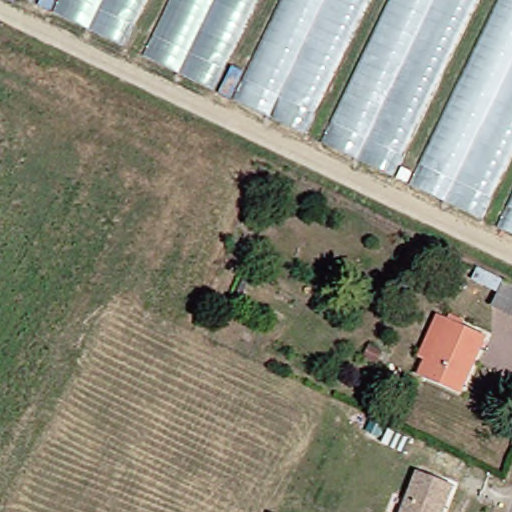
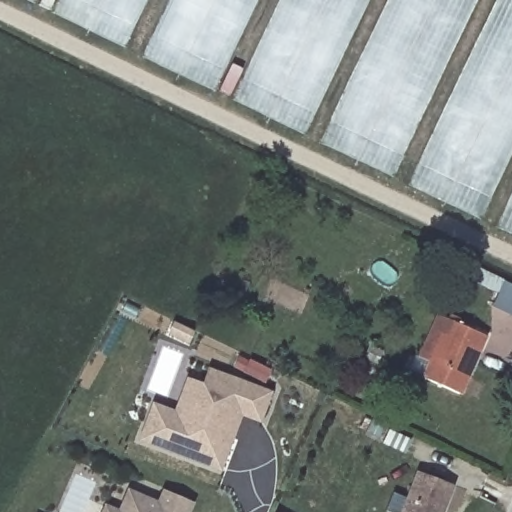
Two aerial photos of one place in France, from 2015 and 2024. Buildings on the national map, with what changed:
unchanged [(22,0),(25,0),(25,1),(22,0)]
unchanged [(49,11),(54,0),(140,0),(118,47),(49,11)]
unchanged [(141,55),(167,0),(249,0),(207,89),(141,55)]
unchanged [(230,99),(278,0),(363,0),(300,132),(230,99)]
unchanged [(323,141),(390,0),(478,0),(395,175),(323,141)]
unchanged [(411,185),(499,0),(512,0),(512,156),(482,220),(411,185)]
unchanged [(497,225),(512,193),(512,233),(497,225)]
unchanged [(512,285),(512,319),(491,310),(497,295),(469,280),(474,266),(512,285)]
unchanged [(446,392),(409,375),(438,313),(474,331),(446,392)]
new [(222,468),(143,438),(156,402),(178,410),(191,377),(207,382),(212,367),(273,390),(263,418),(244,411),(234,437),(222,468)]
unchanged [(439,512),(398,512),(412,472),(448,484),(439,512)]
new [(191,512),(101,512),(104,505),(118,510),(126,488),(156,501),(162,490),(195,503),(191,512)]

